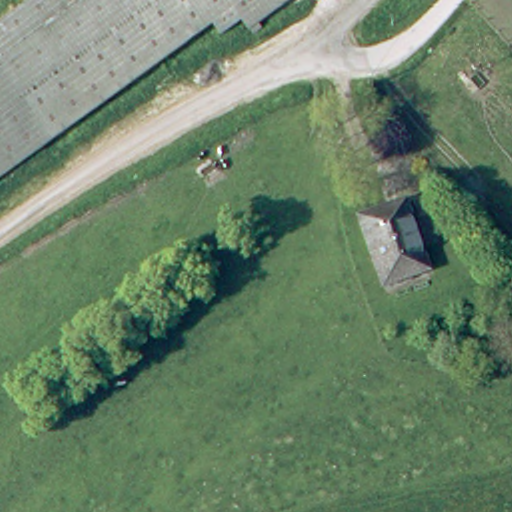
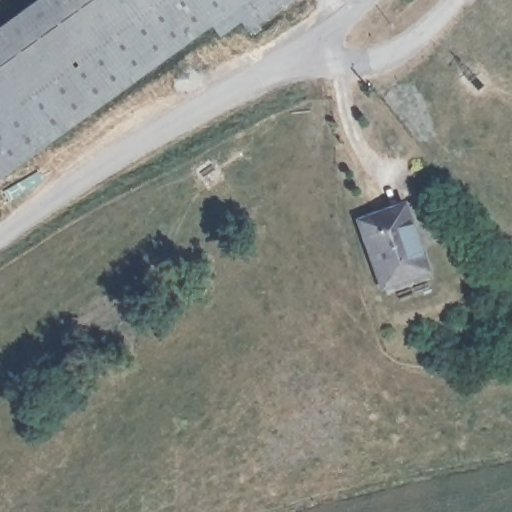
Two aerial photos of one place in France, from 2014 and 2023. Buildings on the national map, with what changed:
unchanged [(35,0),(287,0),(251,27),(245,18),(226,31),(216,18),(0,175),(0,25),(35,0)]
unchanged [(430,272),(387,286),(364,219),(408,204),(430,272)]

